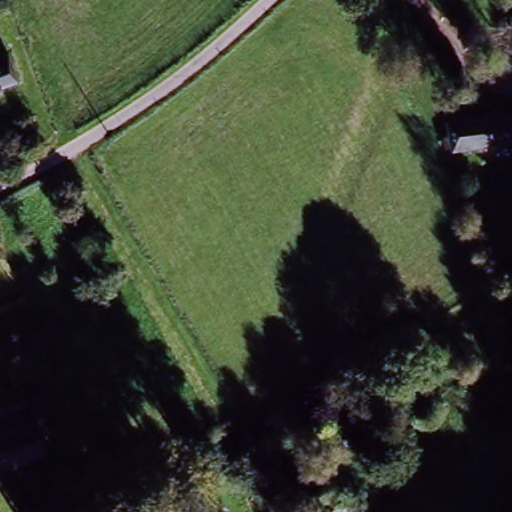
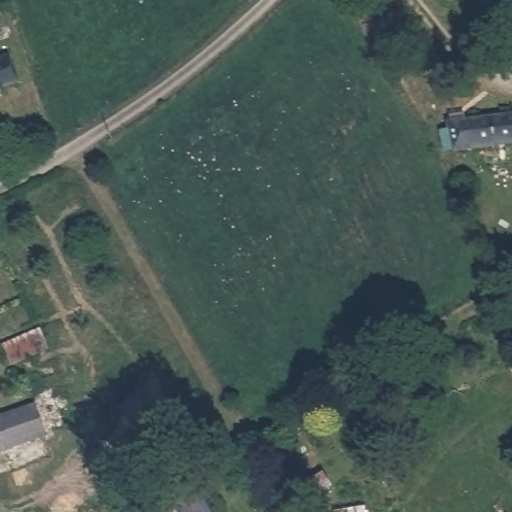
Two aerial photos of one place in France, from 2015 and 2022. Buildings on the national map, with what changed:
unchanged [(14,86),(0,92),(0,63),(4,61),(14,86)]
unchanged [(512,117),(512,149),(449,150),(448,143),(448,118),(512,117)]
unchanged [(42,434),(0,449),(0,418),(32,405),(42,434)]
unchanged [(203,512),(171,512),(170,509),(195,496),(203,512)]
unchanged [(360,507),(361,512),(329,512),(329,511),(360,507)]

